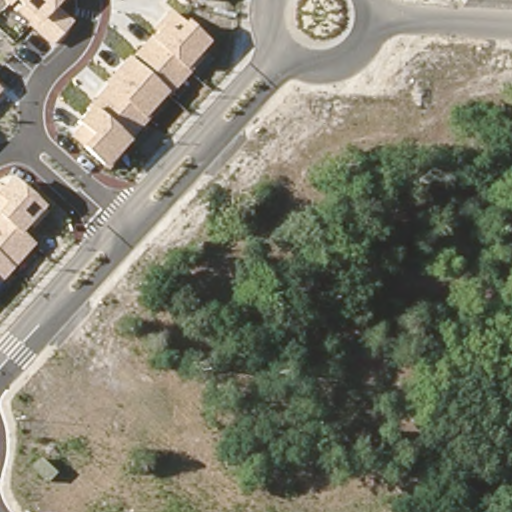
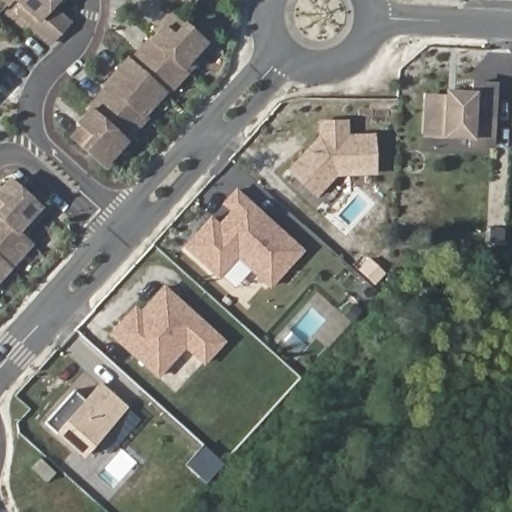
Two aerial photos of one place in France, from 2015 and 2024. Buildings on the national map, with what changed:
unchanged [(8,5),(3,0),(12,0),(8,5)]
unchanged [(55,6),(71,21),(51,47),(26,26),(29,24),(16,12),(21,6),(15,0),(61,0),(55,6)]
unchanged [(189,2),(186,0),(191,0),(189,2)]
unchanged [(209,42),(198,55),(202,58),(168,97),(165,95),(147,116),(149,118),(131,142),(105,169),(82,147),(69,137),(78,125),(75,122),(85,111),(84,110),(155,32),(151,29),(169,10),(209,42)]
new [(445,94),(445,89),(470,90),(471,80),(498,81),(495,149),(466,147),(466,139),(442,138),(422,137),(425,94),(445,94)]
unchanged [(0,89),(1,90),(0,91),(0,89)]
new [(318,121),(348,119),(349,134),(375,133),(377,173),(336,175),(317,199),(288,170),(319,137),(318,121)]
unchanged [(35,243),(0,282),(0,186),(9,176),(43,207),(46,212),(26,235),(35,243)]
new [(219,278),(184,246),(212,215),(219,222),(230,211),(222,203),(236,187),(305,250),(270,289),(237,259),(219,278)]
new [(110,334),(136,306),(140,310),(165,285),(227,342),(204,366),(186,349),(158,377),(110,334)]
new [(83,458),(54,432),(45,423),(75,392),(84,400),(100,382),(128,407),(83,458)]

